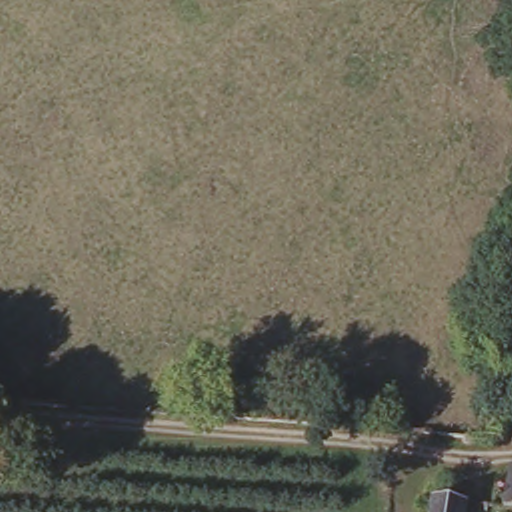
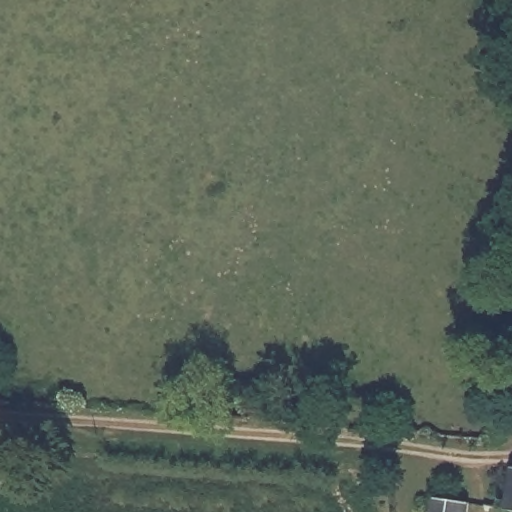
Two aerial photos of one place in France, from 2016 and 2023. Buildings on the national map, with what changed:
unchanged [(475,501),(472,512),(437,512),(441,495),(475,501)]

